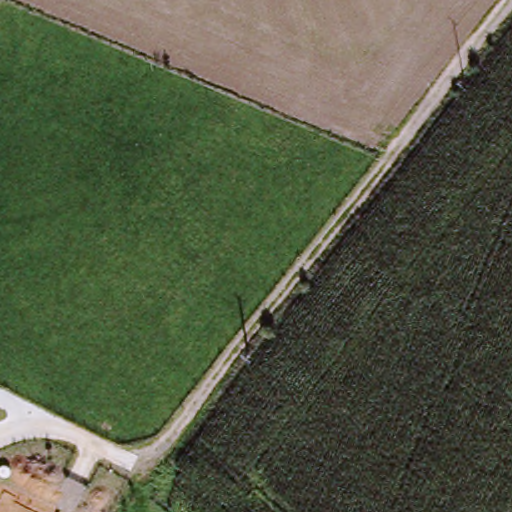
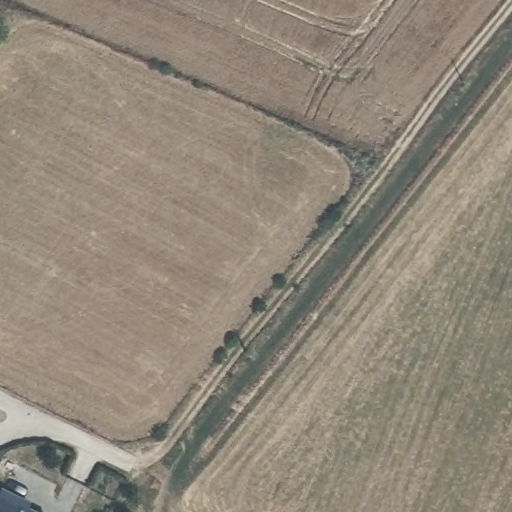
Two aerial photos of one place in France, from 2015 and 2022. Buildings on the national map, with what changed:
new [(31,502),(27,508),(36,512),(0,512),(0,491),(1,488),(31,502)]

